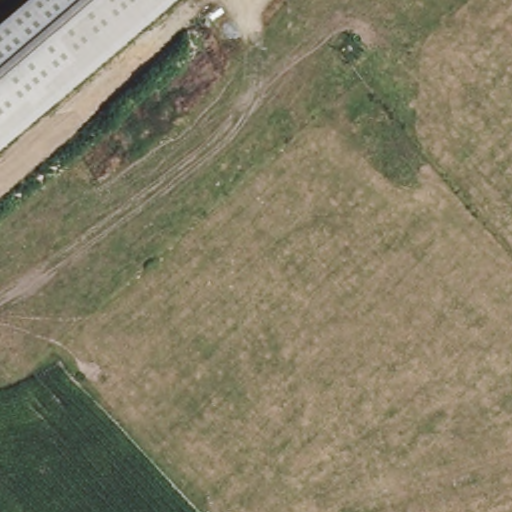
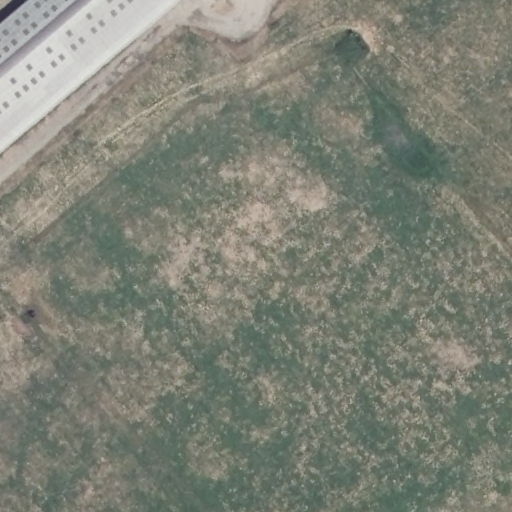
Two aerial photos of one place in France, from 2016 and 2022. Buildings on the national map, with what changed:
unchanged [(27,0),(181,0),(0,155),(0,24),(27,0)]

